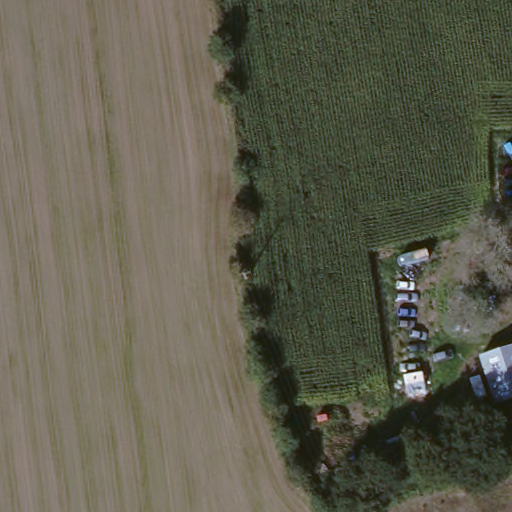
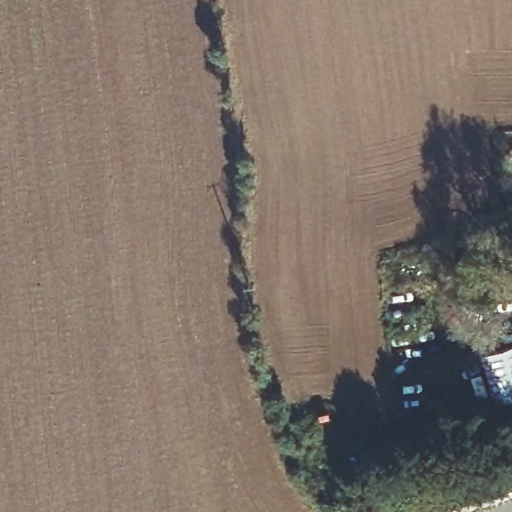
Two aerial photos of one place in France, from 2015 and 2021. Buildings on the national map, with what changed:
unchanged [(479,355),(512,345),(512,401),(496,407),(479,355)]
unchanged [(441,453),(398,466),(393,443),(432,430),(441,453)]

